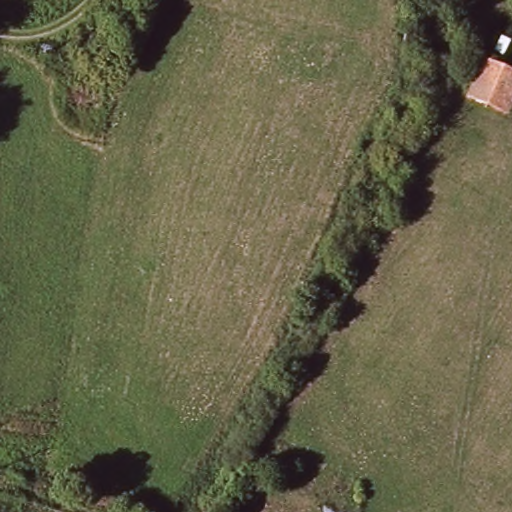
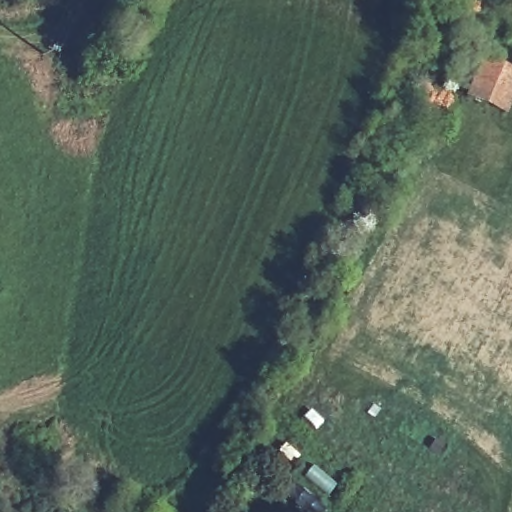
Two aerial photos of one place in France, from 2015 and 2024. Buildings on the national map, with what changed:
unchanged [(512,72),(512,91),(504,109),(470,96),(485,61),(512,72)]

